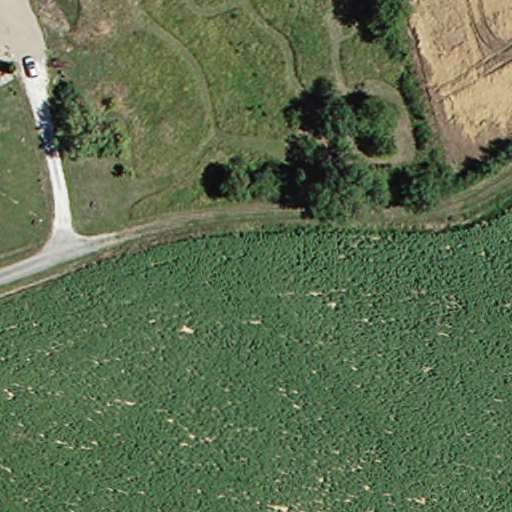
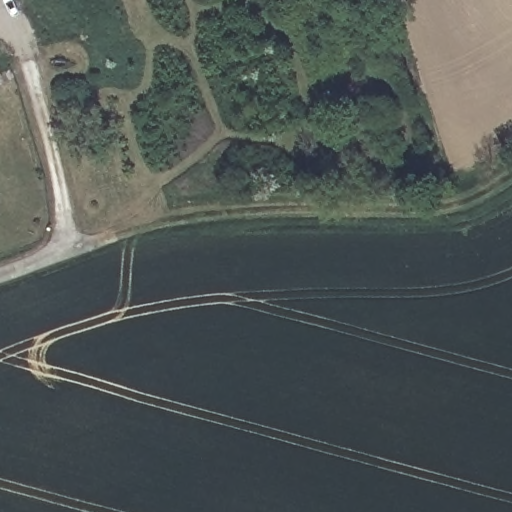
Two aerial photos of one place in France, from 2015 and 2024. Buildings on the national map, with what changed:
unchanged [(0,71),(0,65),(3,70),(0,71)]

